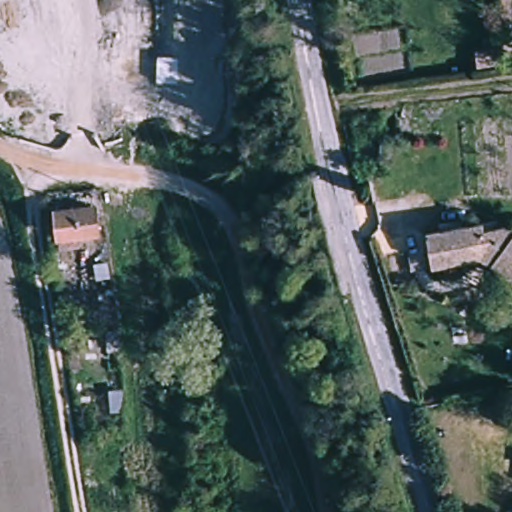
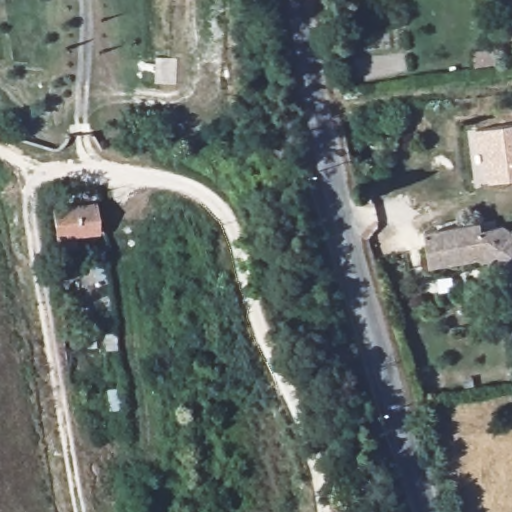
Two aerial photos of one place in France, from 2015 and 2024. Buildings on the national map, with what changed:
unchanged [(501,47),(503,69),(473,72),(473,50),(501,47)]
new [(483,150),(478,150),(475,130),(512,125),(512,180),(488,182),(483,150)]
unchanged [(91,210),(93,236),(52,240),(50,215),(91,210)]
unchanged [(416,235),(469,226),(471,235),(494,230),(506,239),(509,235),(512,237),(512,286),(471,258),(423,268),(416,235)]

